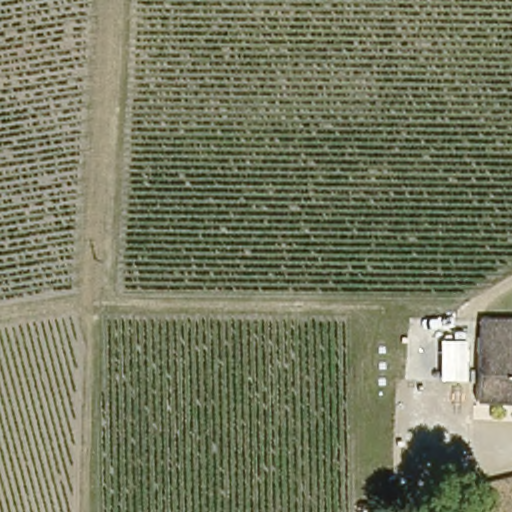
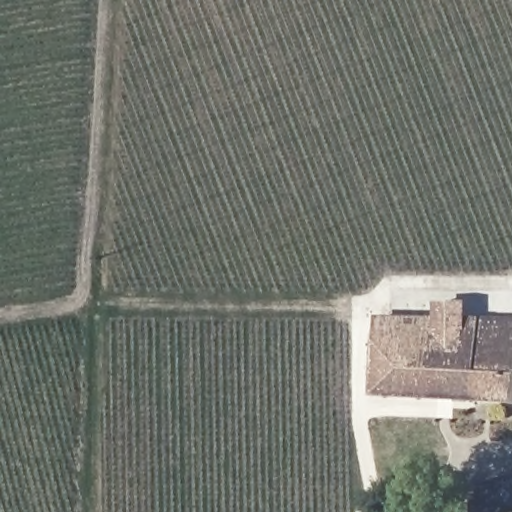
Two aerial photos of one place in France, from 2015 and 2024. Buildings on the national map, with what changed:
new [(476,401),(371,395),(375,341),(375,316),(435,318),(435,302),(468,303),(467,320),(477,321),(476,401)]
unchanged [(477,321),(507,320),(512,320),(512,402),(476,401),(477,321)]
unchanged [(512,512),(468,512),(465,498),(512,487),(512,512)]

